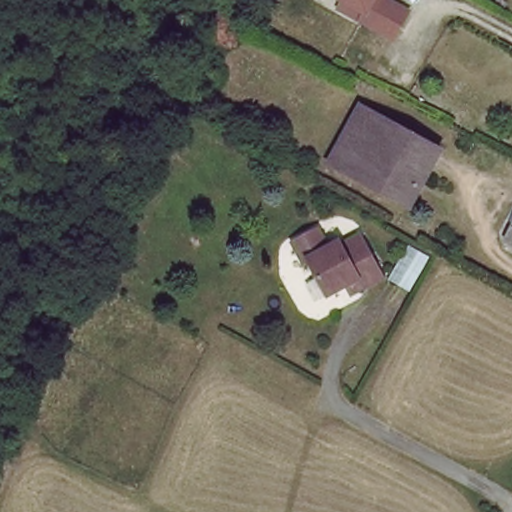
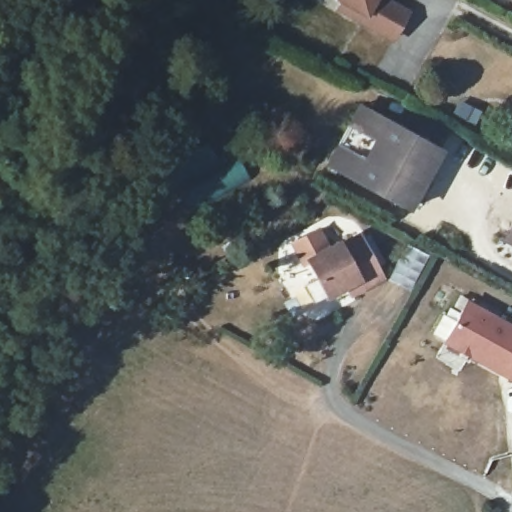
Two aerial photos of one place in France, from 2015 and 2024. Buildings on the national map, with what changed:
unchanged [(340,0),(393,0),(416,10),(400,41),(340,10),(343,1),(340,0)]
unchanged [(328,162),(360,105),(387,120),(354,177),(328,162)]
unchanged [(442,150),(408,209),(354,177),(387,120),(442,150)]
unchanged [(508,235),(512,227),(512,237),(508,235)]
unchanged [(345,278),(327,288),(309,258),(303,259),(295,244),(320,228),(331,243),(340,238),(342,240),(359,230),(384,268),(364,281),(352,288),(345,278)]
new [(512,323),(512,381),(447,345),(470,300),(512,323)]

